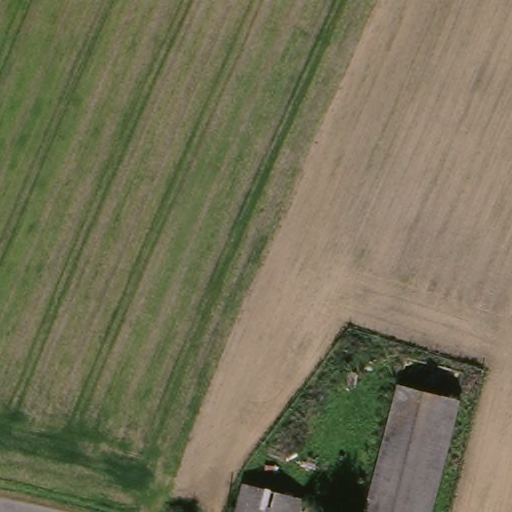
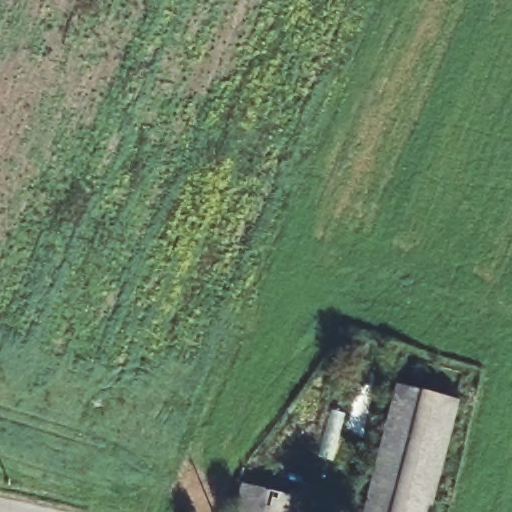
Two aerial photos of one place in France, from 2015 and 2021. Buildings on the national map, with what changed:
unchanged [(392,394),(456,408),(433,512),(367,512),(392,394)]
unchanged [(294,512),(229,512),(238,485),(297,500),(294,512)]

